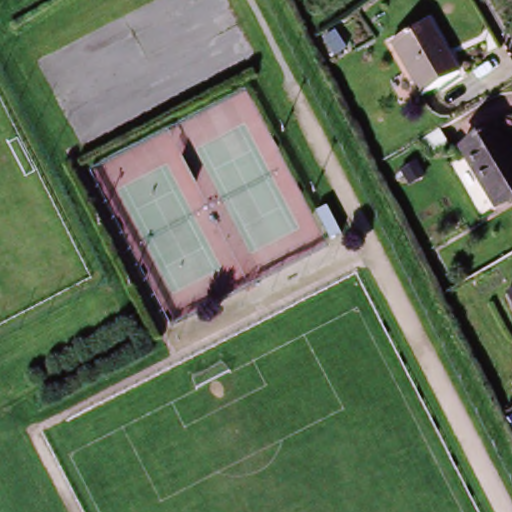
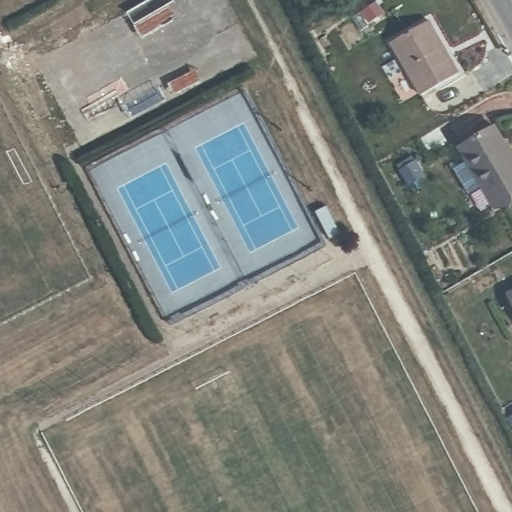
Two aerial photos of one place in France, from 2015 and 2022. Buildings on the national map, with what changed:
unchanged [(420,91),(390,40),(427,18),(458,69),(420,91)]
unchanged [(460,144),(494,124),(512,155),(512,194),(495,204),(460,144)]
unchanged [(512,305),(507,295),(512,293),(512,305)]

